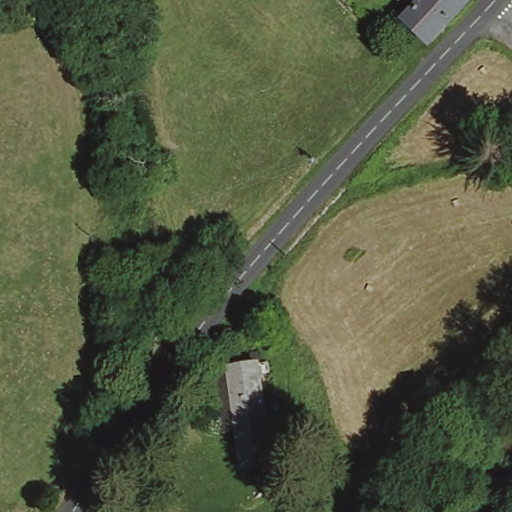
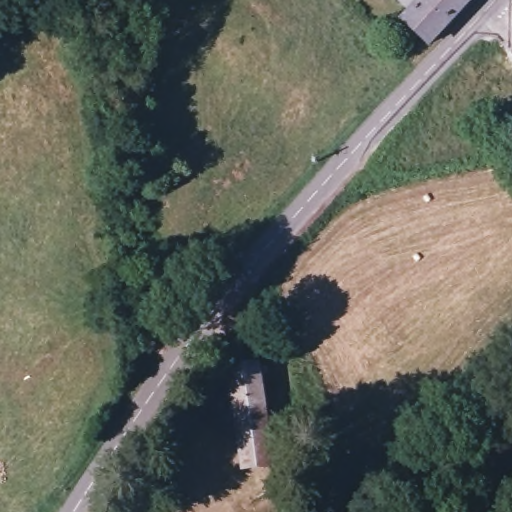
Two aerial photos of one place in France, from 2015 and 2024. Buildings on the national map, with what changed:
unchanged [(403,15),(411,4),(415,0),(465,0),(427,39),(403,15)]
unchanged [(408,0),(415,0),(411,4),(408,0)]
unchanged [(275,471),(250,473),(245,439),(227,441),(220,377),(244,374),(242,362),(261,360),(263,373),(264,381),(265,387),(266,393),(275,471)]

